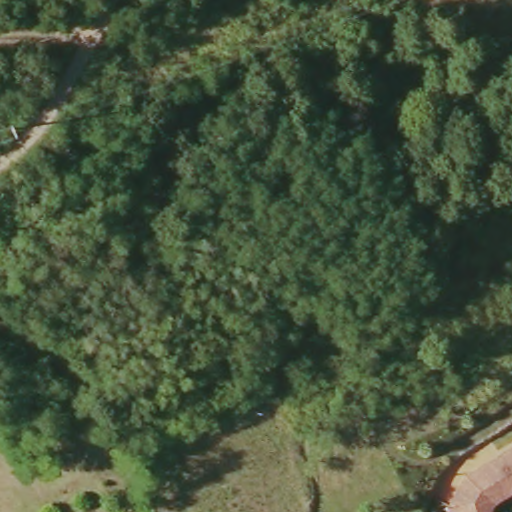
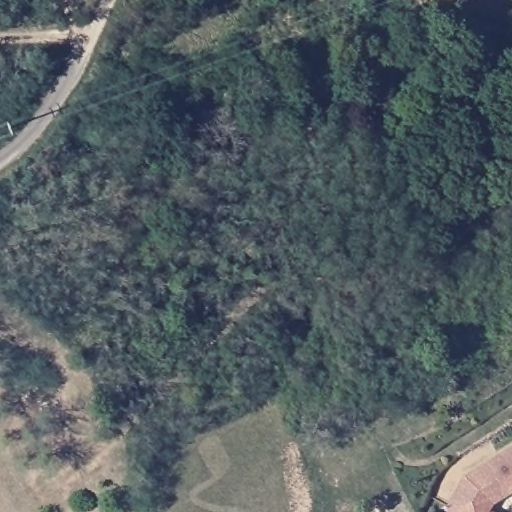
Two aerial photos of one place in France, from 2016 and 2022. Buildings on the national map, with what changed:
unchanged [(512,448),(512,492),(492,460),(512,448)]
unchanged [(492,460),(512,492),(512,493),(489,507),(487,512),(443,512),(460,479),(492,460)]

